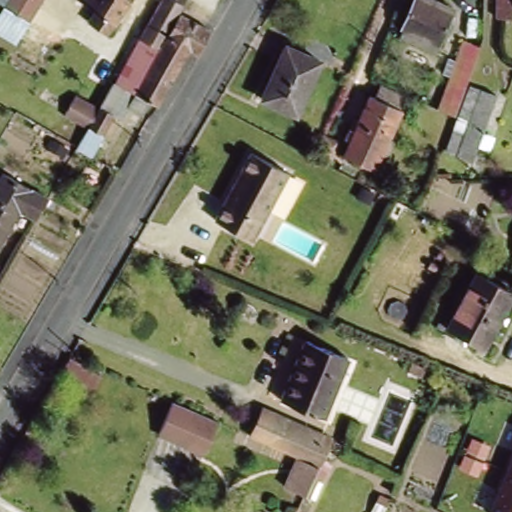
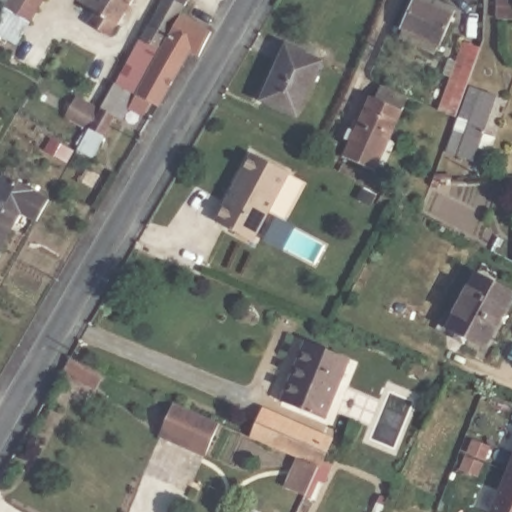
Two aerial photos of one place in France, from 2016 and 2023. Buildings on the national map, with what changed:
unchanged [(8,0),(40,0),(31,16),(6,4),(8,0)]
unchanged [(120,109),(113,105),(101,124),(89,117),(74,109),(75,106),(71,105),(78,94),(81,95),(83,92),(93,99),(109,72),(113,75),(115,70),(118,71),(122,64),(131,69),(138,55),(129,50),(156,0),(180,0),(163,31),(164,32),(164,31),(167,26),(180,4),(183,6),(203,17),(210,21),(198,44),(189,40),(186,46),(183,51),(156,95),(146,90),(138,102),(128,96),(120,109)]
unchanged [(100,13),(83,2),(84,0),(137,0),(114,36),(93,25),(100,13)]
unchanged [(408,25),(404,24),(415,0),(441,0),(457,7),(454,12),(455,12),(443,41),(439,51),(403,36),(408,25)]
unchanged [(495,0),(512,0),(512,18),(494,16),(495,0)]
unchanged [(477,56),(454,116),(439,109),(460,40),(479,46),(477,56)]
unchanged [(288,41),(319,55),(296,110),(264,96),(288,41)]
unchanged [(353,124),(359,126),(376,91),(383,95),(388,82),(414,95),(381,166),(348,150),(354,137),(348,135),(353,124)]
unchanged [(474,157),(457,150),(468,120),(456,115),(467,86),(479,90),(496,97),(474,157)]
unchanged [(328,131),(341,138),(333,155),(320,147),(328,131)]
unchanged [(245,168),(256,149),(293,170),(255,236),(218,215),(239,179),(245,168)]
unchanged [(25,208),(0,252),(0,182),(3,185),(12,170),(53,194),(41,217),(25,208)]
unchanged [(474,267),(509,286),(482,341),(446,322),(474,267)]
unchanged [(320,414),(279,397),(304,337),(345,354),(320,414)]
unchanged [(101,374),(88,398),(56,380),(69,357),(101,374)]
unchanged [(219,415),(206,450),(158,429),(172,395),(219,415)]
unchanged [(312,491),(291,482),(304,454),(259,433),(271,405),(299,417),(336,433),(331,444),(333,445),(329,455),(326,461),(325,463),(318,480),(312,491)]
unchanged [(512,450),(512,512),(487,512),(512,450)]

